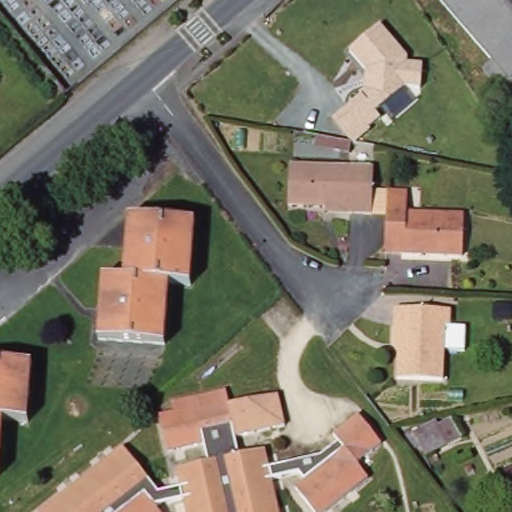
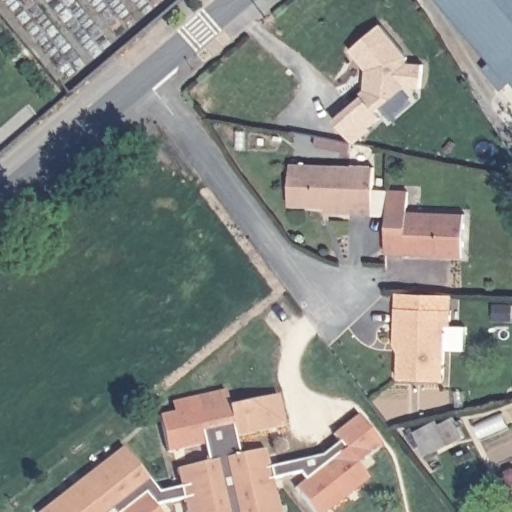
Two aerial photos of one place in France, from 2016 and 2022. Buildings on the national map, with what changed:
unchanged [(497,84),(480,62),(489,54),(441,0),(512,0),(512,80),(507,75),(497,84)]
unchanged [(407,57),(407,61),(423,62),(421,89),(405,87),(375,114),(380,119),(368,127),(370,130),(352,144),(334,120),(360,99),(357,95),(362,90),(365,70),(348,51),(378,25),(407,57)]
unchanged [(320,207),(285,206),(283,205),(285,164),(368,167),(367,214),(345,213),(320,212),(320,207)]
unchanged [(403,186),(403,208),(460,210),(458,251),(382,249),(384,186),(403,186)]
demolished [(191,219),(187,278),(186,280),(165,279),(160,340),(94,335),(97,273),(121,275),(124,213),(191,219)]
unchanged [(395,374),(397,337),(392,337),(395,302),(451,305),(451,320),(465,320),(463,344),(442,343),(441,376),(395,374)]
demolished [(27,360),(25,418),(0,418),(0,358),(27,360)]
unchanged [(185,499),(180,500),(155,508),(158,512),(42,512),(124,447),(160,493),(172,490),(182,487),(177,469),(208,461),(203,443),(167,452),(159,415),(172,411),(170,402),(176,400),(224,389),(227,403),(275,392),(282,425),(233,436),(237,455),(263,448),(267,467),(319,455),(338,440),(332,432),(355,412),(381,445),(358,465),(370,479),(329,512),(313,512),(295,488),(302,482),(300,471),(270,479),(278,512),(188,512),(188,511),(185,499)]
unchanged [(423,456),(408,431),(435,415),(439,420),(450,415),(462,433),(423,456)]

